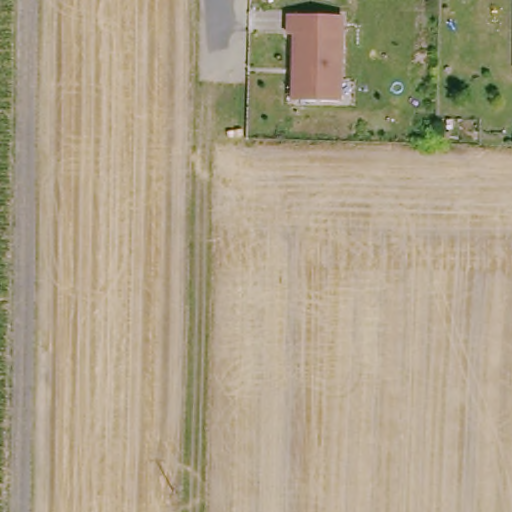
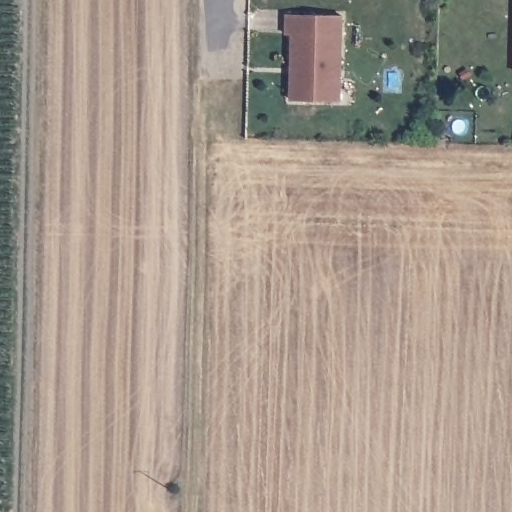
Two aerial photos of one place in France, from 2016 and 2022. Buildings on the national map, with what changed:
unchanged [(292,64),(292,34),(286,34),(285,13),(341,14),(341,99),(304,99),(291,99),(292,64)]

